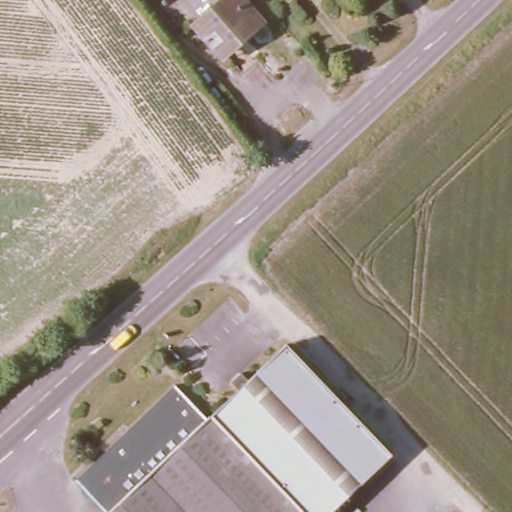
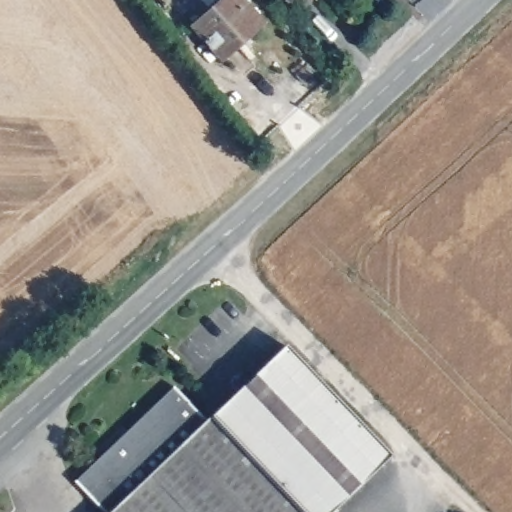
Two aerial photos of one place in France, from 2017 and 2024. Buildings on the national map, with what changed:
unchanged [(225,0),(244,0),(262,24),(222,60),(193,29),(225,0)]
unchanged [(233,396),(227,389),(237,379),(245,386),(285,347),(389,454),(327,512),(320,512),(220,409),(233,396)]
unchanged [(72,481),(172,387),(203,421),(220,409),(320,512),(99,512),(72,481)]

